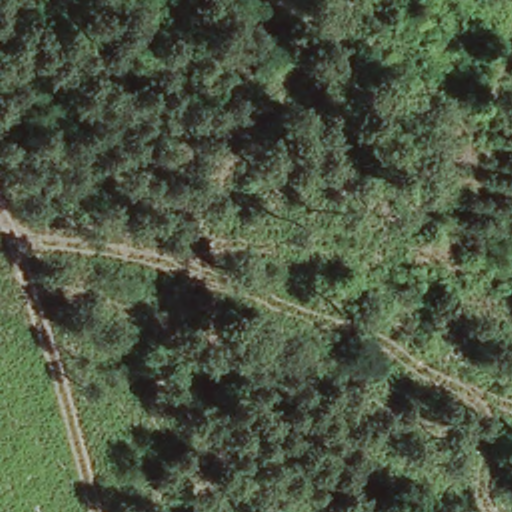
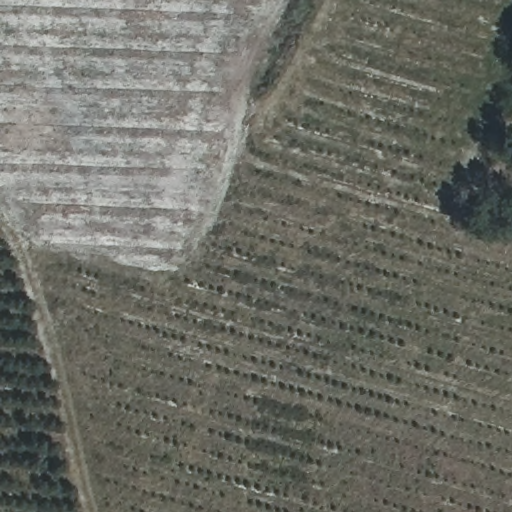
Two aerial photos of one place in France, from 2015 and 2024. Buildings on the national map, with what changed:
unchanged [(9,137),(0,137),(0,112),(9,112),(9,137)]

